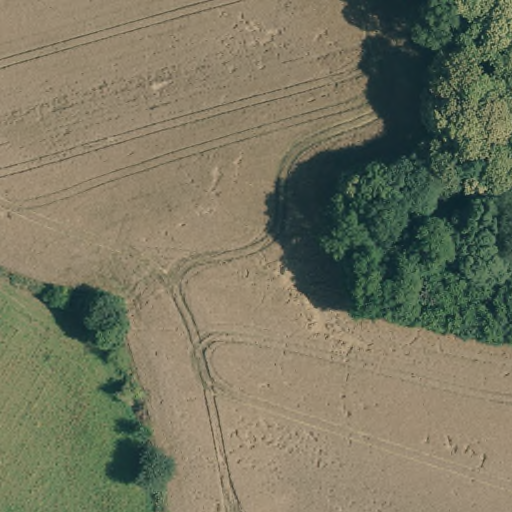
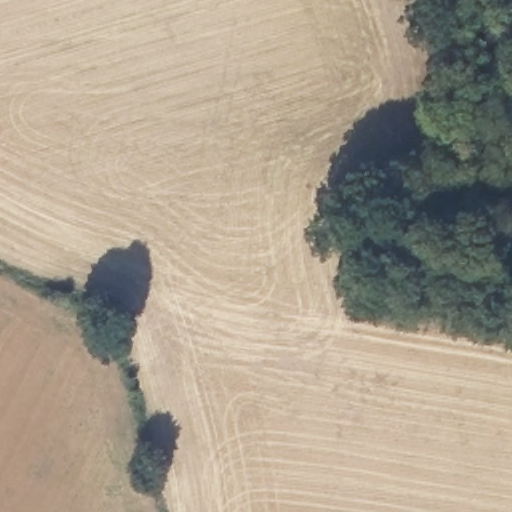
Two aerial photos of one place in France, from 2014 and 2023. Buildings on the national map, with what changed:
[]

